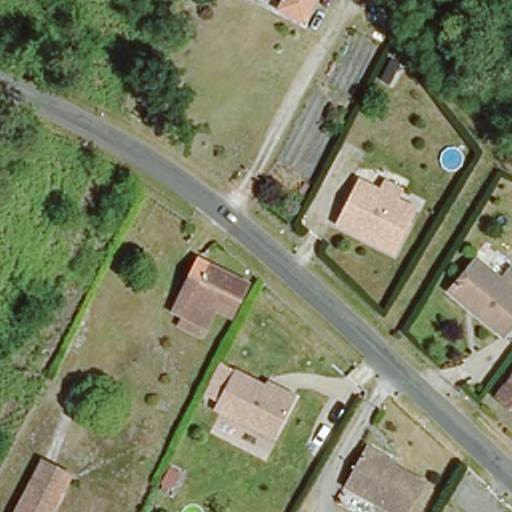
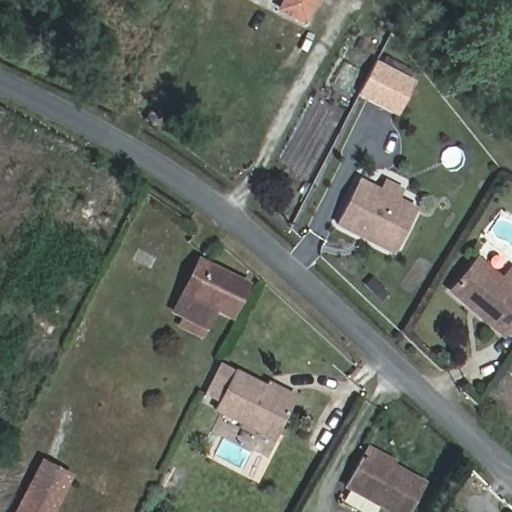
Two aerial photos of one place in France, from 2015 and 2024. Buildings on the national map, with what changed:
unchanged [(301,20),(279,7),(283,0),(314,0),(301,20)]
new [(357,95),(376,60),(415,80),(397,116),(357,95)]
unchanged [(146,118),(140,125),(131,119),(137,110),(146,118)]
unchanged [(392,252),(335,224),(352,190),(357,180),(378,190),(383,181),(401,190),(397,200),(415,209),(392,252)]
unchanged [(476,257),(501,277),(510,265),(512,267),(512,322),(504,331),(476,309),(468,303),(450,289),(476,257)]
unchanged [(230,320),(215,311),(206,327),(184,316),(172,310),(197,263),(206,268),(245,290),(230,320)]
unchanged [(263,382),(291,396),(288,402),(270,440),(210,410),(229,372),(261,388),(263,382)]
unchanged [(512,385),(512,413),(498,404),(512,385)]
unchanged [(409,512),(396,512),(344,483),(363,450),(425,484),(409,512)]
unchanged [(54,512),(13,512),(41,459),(74,474),(54,512)]

